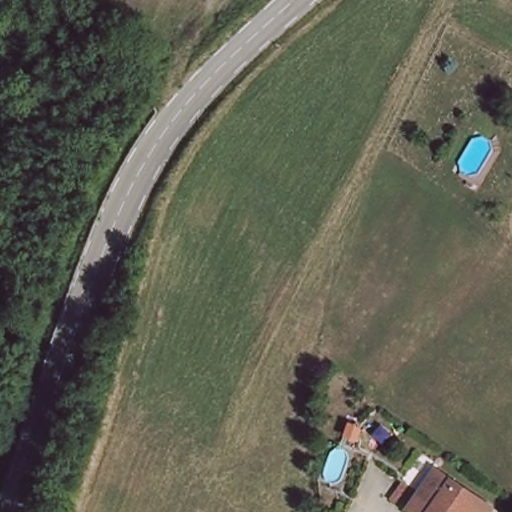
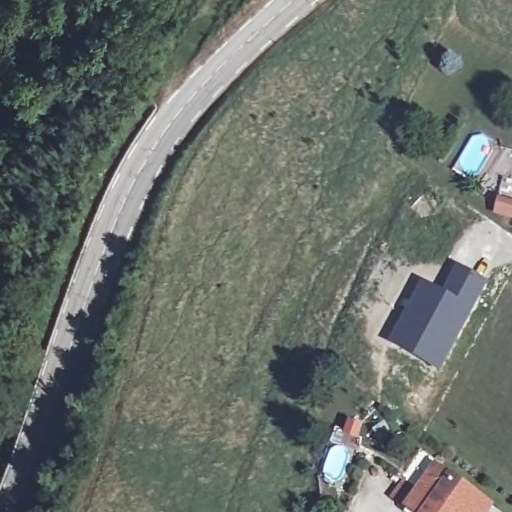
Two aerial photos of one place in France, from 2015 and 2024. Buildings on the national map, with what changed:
new [(424,282),(442,291),(458,265),(487,281),(457,339),(462,342),(443,377),(389,346),(424,282)]
unchanged [(444,468),(494,501),(486,512),(419,512),(417,510),(444,468)]

